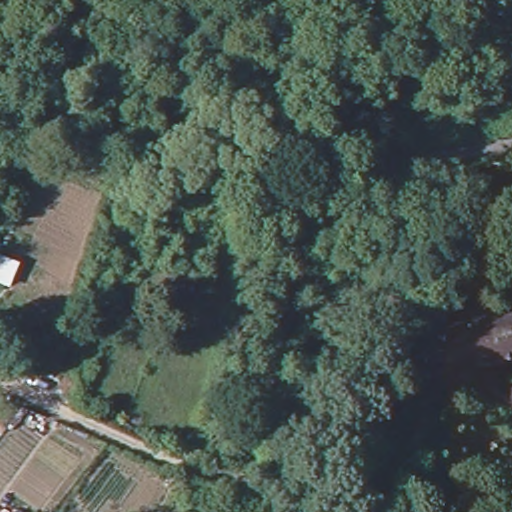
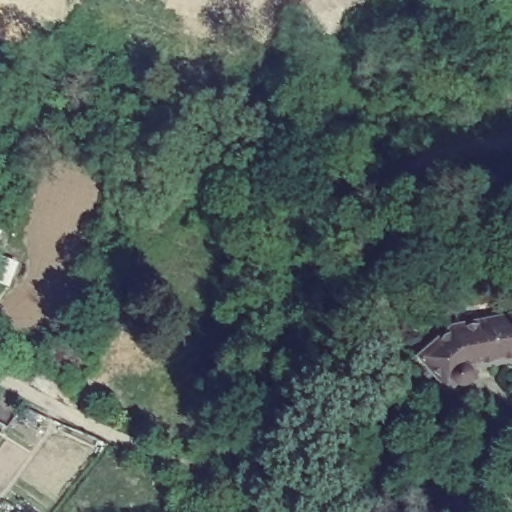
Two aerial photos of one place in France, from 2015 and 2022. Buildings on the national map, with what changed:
unchanged [(446,394),(422,361),(462,328),(512,319),(512,359),(478,365),(482,371),(483,376),(482,381),(479,385),(473,386),(467,386),(461,382),(446,394)]

